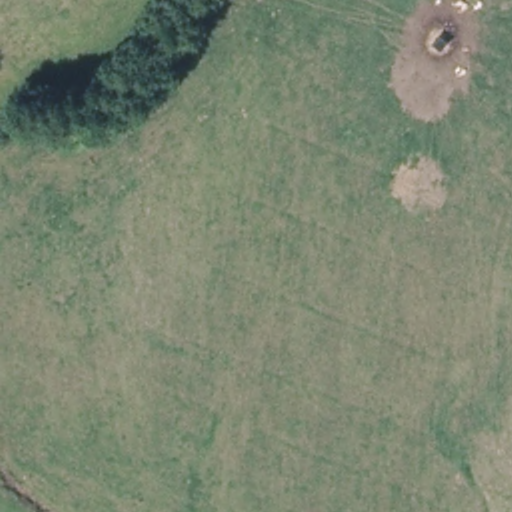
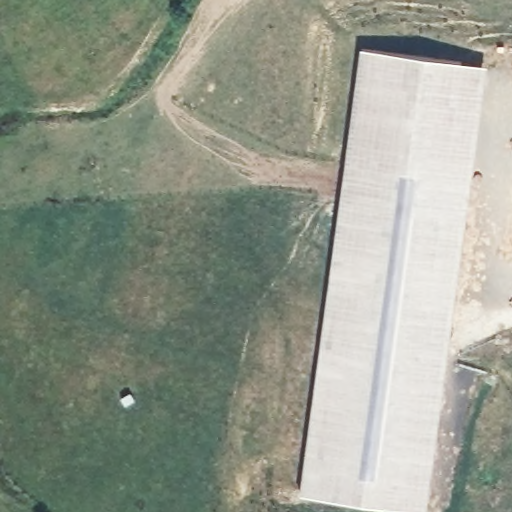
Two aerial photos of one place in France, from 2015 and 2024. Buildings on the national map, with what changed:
new [(427,512),(416,512),(300,496),(361,47),(487,64),(427,512)]

